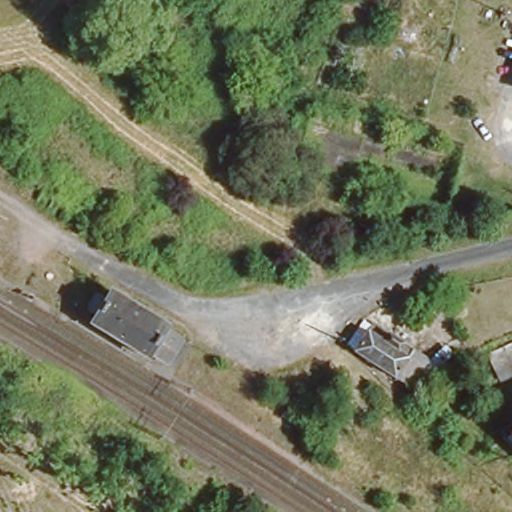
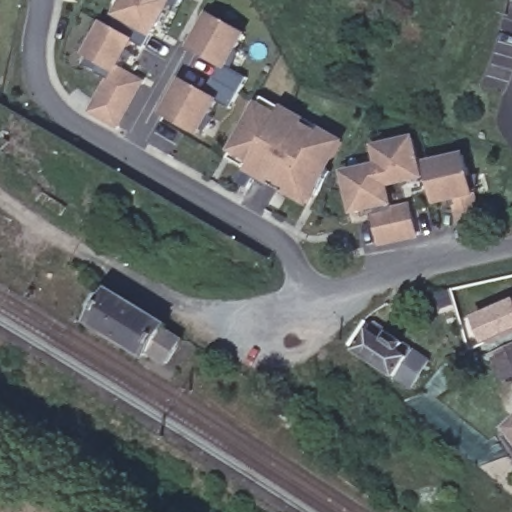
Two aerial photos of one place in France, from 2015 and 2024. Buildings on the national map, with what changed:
new [(78,2),(67,0),(78,0),(78,2)]
new [(131,41),(117,68),(142,82),(116,126),(90,111),(108,80),(95,72),(101,61),(83,51),(100,21),(111,27),(126,0),(182,0),(179,6),(170,1),(144,47),(131,41)]
new [(243,31),(227,64),(248,77),(231,108),(216,100),(197,132),(164,113),(183,80),(206,92),(222,64),(193,47),(211,14),(243,31)]
new [(309,202),(257,172),(249,189),(236,181),(249,159),(233,150),(264,96),(343,141),(309,202)]
new [(422,177),(388,184),(394,210),(412,205),(419,236),(382,244),(374,207),(356,211),(350,175),(382,169),(379,146),(416,138),(422,177)]
new [(440,202),(430,163),(467,156),(482,222),(463,226),(458,203),(457,197),(440,202)]
unchanged [(171,323),(184,336),(167,363),(151,353),(147,357),(91,323),(111,290),(171,323)]
new [(488,343),(478,320),(512,303),(512,333),(488,343)]
unchanged [(367,325),(407,350),(391,373),(349,347),(367,325)]
unchanged [(496,381),(485,357),(512,345),(512,375),(496,381)]
unchanged [(429,357),(445,346),(453,353),(422,392),(391,373),(407,350),(429,357)]
unchanged [(512,424),(512,432),(508,428),(512,424)]

